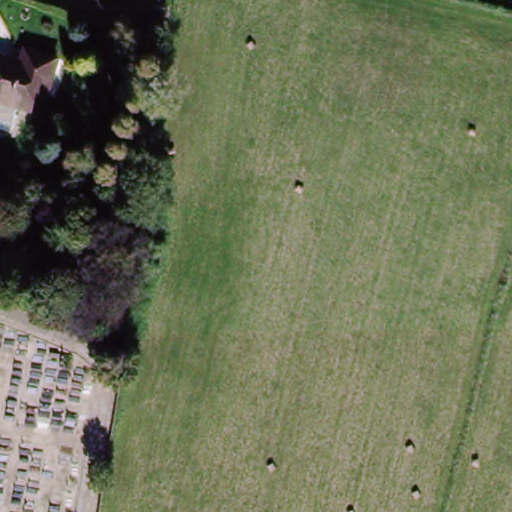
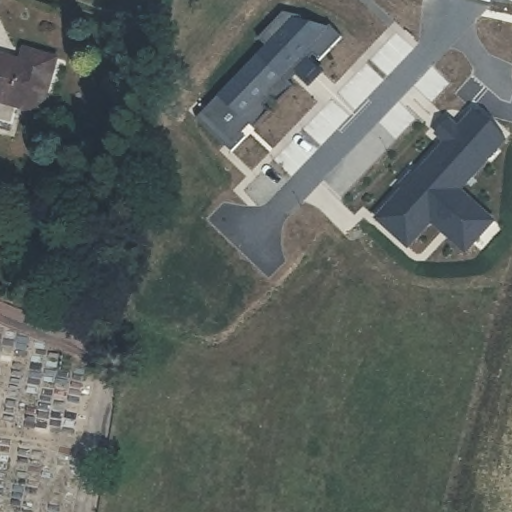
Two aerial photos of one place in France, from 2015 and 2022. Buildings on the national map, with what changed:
unchanged [(166,8),(163,19),(149,14),(152,4),(166,8)]
new [(299,14),(296,17),(331,25),(342,37),(321,60),(315,54),(311,59),(324,71),(310,86),(296,74),(289,81),(296,87),(279,106),(273,100),(266,106),(272,112),(254,129),(251,125),(241,135),(245,138),(233,151),(198,116),(269,46),(260,37),(284,12),(299,14)]
unchanged [(128,29),(133,14),(158,22),(153,37),(128,29)]
unchanged [(45,114),(19,108),(14,129),(0,126),(0,46),(22,52),(25,39),(61,47),(45,114)]
new [(510,141),(466,191),(498,221),(466,254),(432,225),(410,249),(376,220),(404,187),(401,185),(413,172),(416,174),(444,144),(434,134),(450,118),(458,126),(474,110),(510,141)]
unchanged [(160,245),(157,267),(133,264),(136,242),(160,245)]

